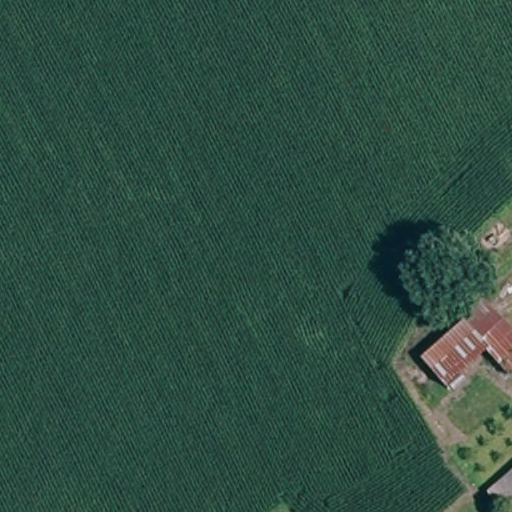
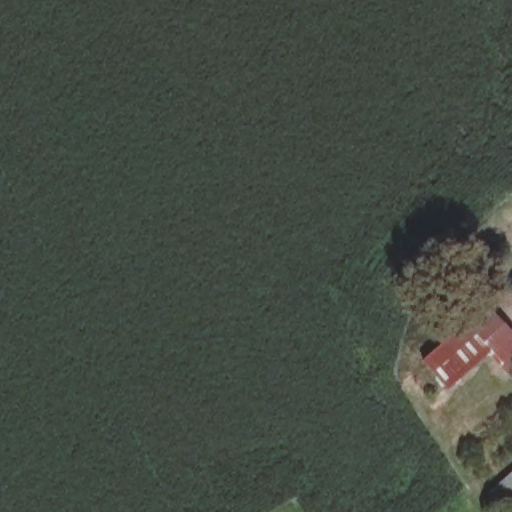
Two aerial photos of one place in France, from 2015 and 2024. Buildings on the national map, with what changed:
unchanged [(447,392),(422,361),(487,304),(512,331),(512,377),(508,381),(487,357),(447,392)]
unchanged [(485,496),(512,472),(512,512),(502,512),(485,496)]

